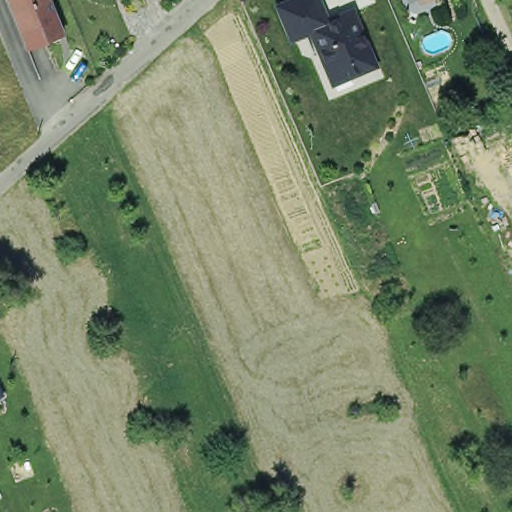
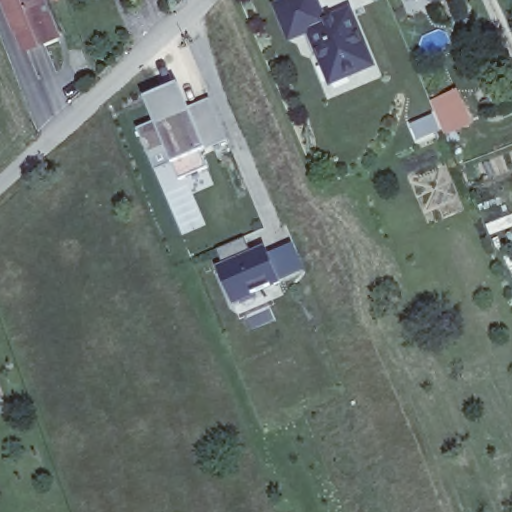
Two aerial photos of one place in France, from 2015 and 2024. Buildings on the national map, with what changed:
unchanged [(5,0),(48,0),(58,25),(26,37),(21,39),(5,0)]
unchanged [(320,62),(305,26),(298,30),(286,34),(275,4),(283,0),(312,0),(320,20),(336,12),(346,9),(368,62),(358,66),(341,73),(327,79),(320,62)]
unchanged [(416,2),(415,0),(420,0),(416,2)]
new [(181,110),(208,100),(222,141),(198,151),(205,166),(176,179),(168,162),(150,167),(133,130),(149,123),(139,98),(172,85),(181,110)]
new [(471,125),(443,137),(440,132),(415,142),(408,124),(432,114),(427,102),(455,91),(471,125)]
new [(278,284),(229,303),(211,262),(218,259),(215,251),(245,238),(250,252),(262,247),(278,284)]

